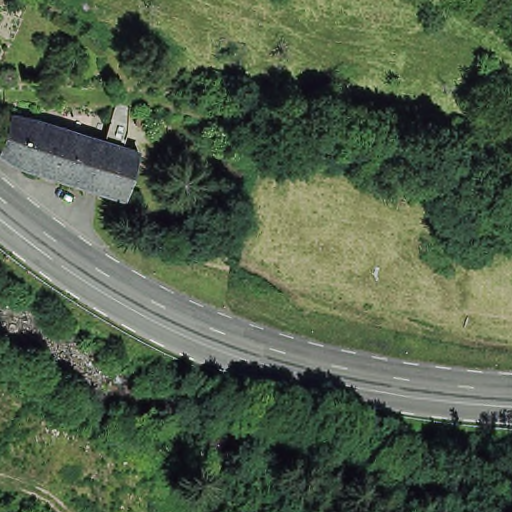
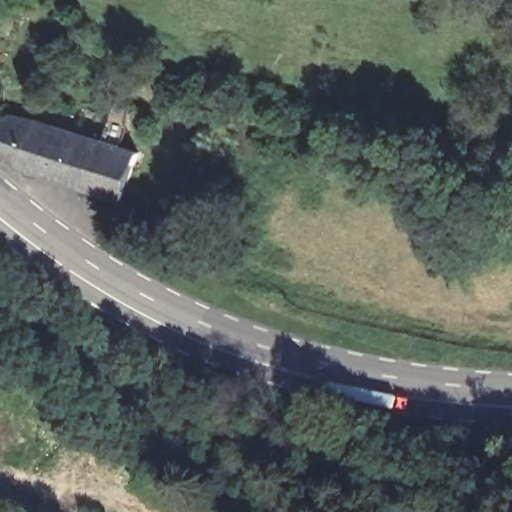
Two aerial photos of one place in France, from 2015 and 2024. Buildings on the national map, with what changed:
unchanged [(127,187),(19,152),(2,135),(12,105),(138,146),(127,187)]

